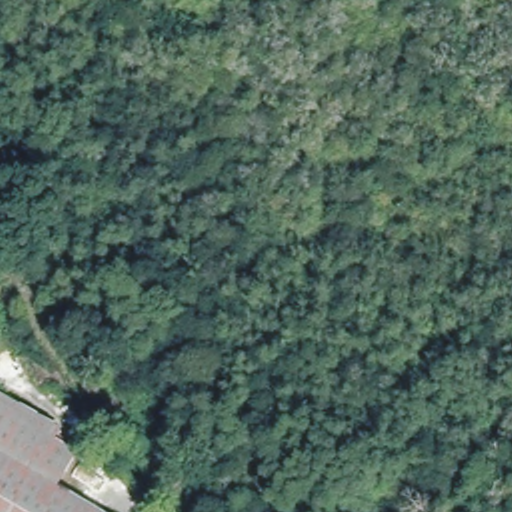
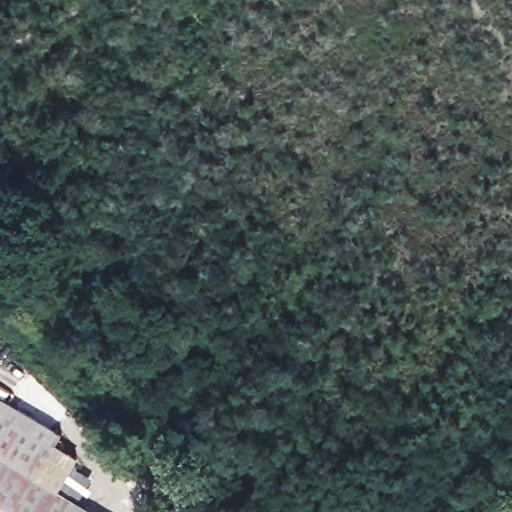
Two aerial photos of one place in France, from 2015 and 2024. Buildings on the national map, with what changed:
unchanged [(0,404),(0,382),(62,424),(70,430),(67,432),(59,445),(0,404)]
unchanged [(81,459),(59,491),(89,512),(0,512),(0,404),(59,445),(81,459)]

